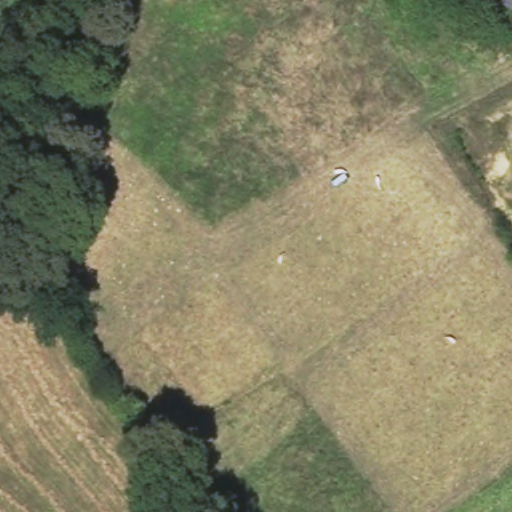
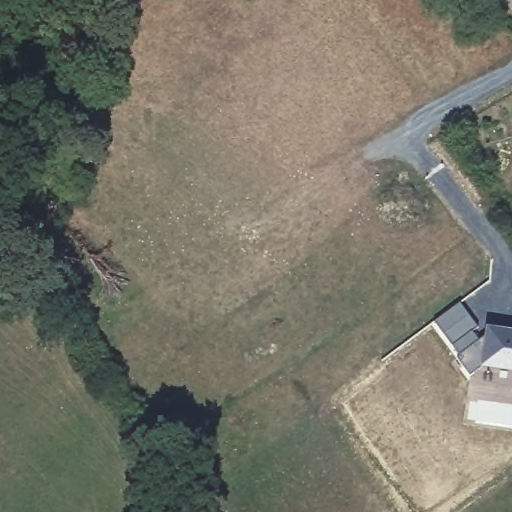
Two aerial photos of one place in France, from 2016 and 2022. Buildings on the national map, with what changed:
new [(481,367),(471,374),(458,358),(461,357),(435,322),(460,303),(480,327),(474,333),(479,340),(486,335),(488,327),(512,331),(512,372),(481,367)]

